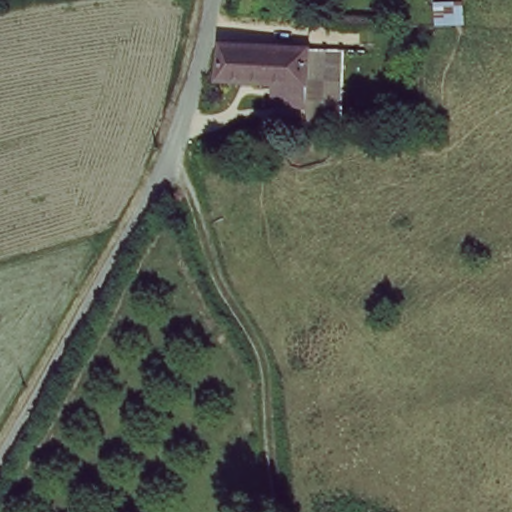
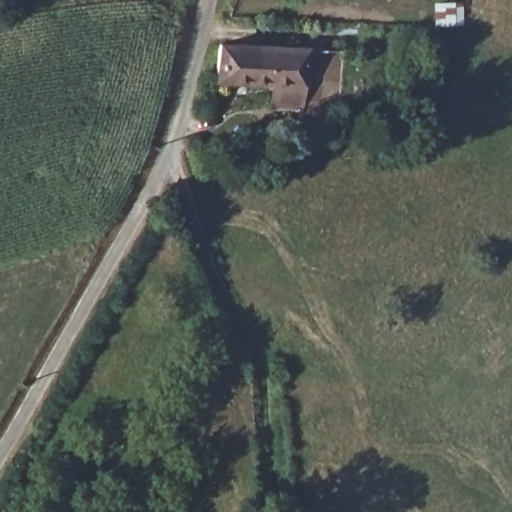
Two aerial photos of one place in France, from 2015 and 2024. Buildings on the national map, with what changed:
unchanged [(271,77),(217,74),(220,42),(300,47),(299,54),(334,56),(332,125),(295,124),(296,95),(270,95),(271,77)]

